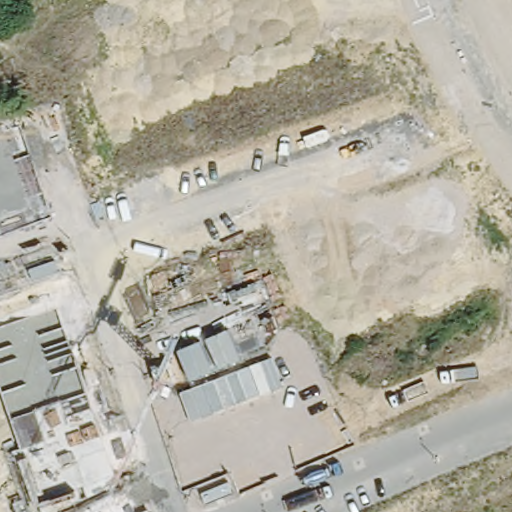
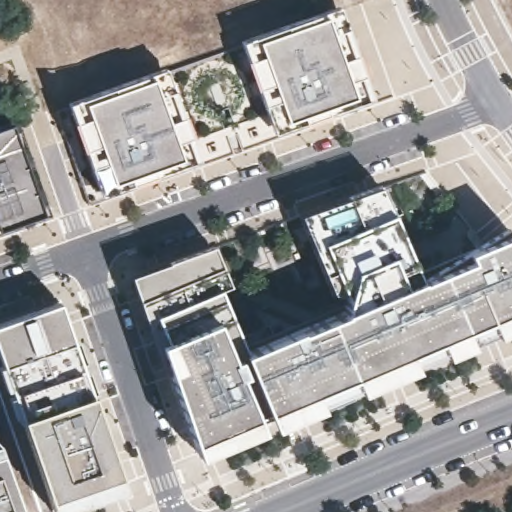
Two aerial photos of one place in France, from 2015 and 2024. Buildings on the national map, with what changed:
new [(339,6),(371,97),(274,132),(243,41),(339,6)]
new [(68,98),(162,64),(198,158),(100,192),(68,98)]
demolished [(111,169),(114,168),(133,209),(91,228),(78,199),(73,187),(51,138),(89,121),(111,169)]
unchanged [(0,231),(0,126),(5,124),(40,218),(0,231)]
demolished [(73,187),(60,192),(45,198),(37,178),(24,150),(51,138),(73,187)]
new [(463,346),(356,392),(189,460),(127,274),(206,246),(244,351),(329,319),(299,219),(376,190),(410,266),(499,230),(512,243),(512,329),(463,346)]
demolished [(267,224),(251,232),(236,238),(226,216),(257,202),(267,224)]
demolished [(86,238),(68,246),(55,219),(75,211),(86,238)]
new [(118,485),(58,508),(18,421),(0,369),(0,326),(55,304),(87,398),(118,485)]
unchanged [(0,464),(21,512),(0,512),(0,464)]

